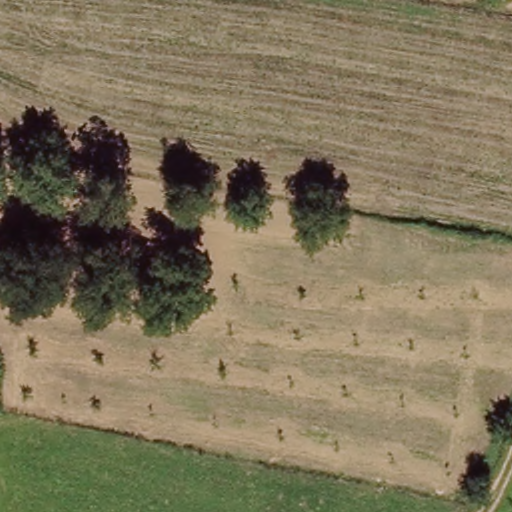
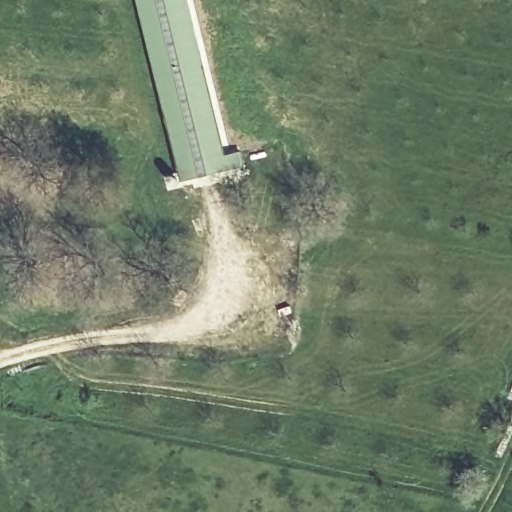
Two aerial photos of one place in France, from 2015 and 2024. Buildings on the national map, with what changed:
new [(245,151),(249,166),(190,182),(142,0),(190,0),(230,155),(245,151)]

